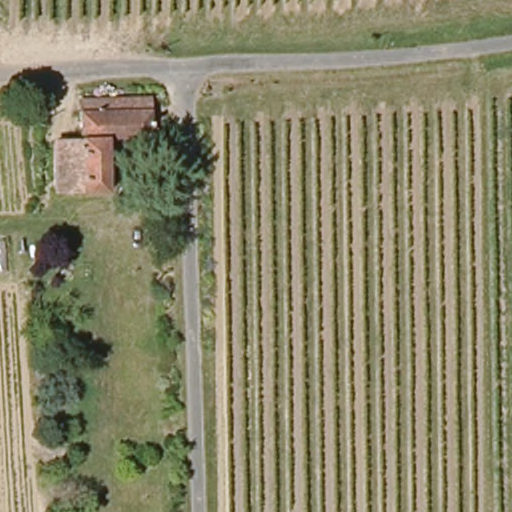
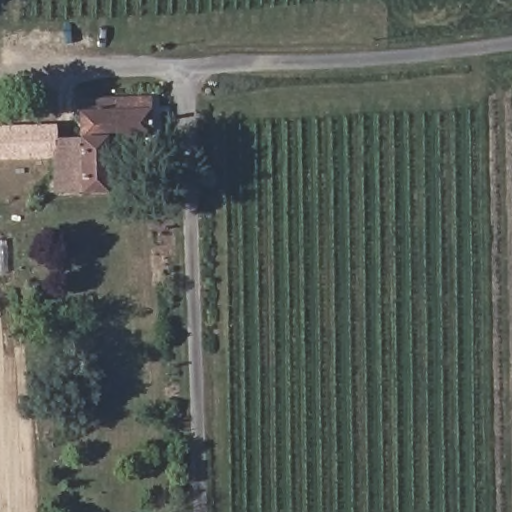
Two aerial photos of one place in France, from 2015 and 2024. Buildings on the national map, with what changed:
unchanged [(61,197),(60,144),(85,143),(83,112),(105,112),(105,100),(148,99),(151,140),(114,144),(114,196),(61,197)]
new [(0,160),(0,125),(56,123),(57,144),(60,144),(60,157),(0,160)]

